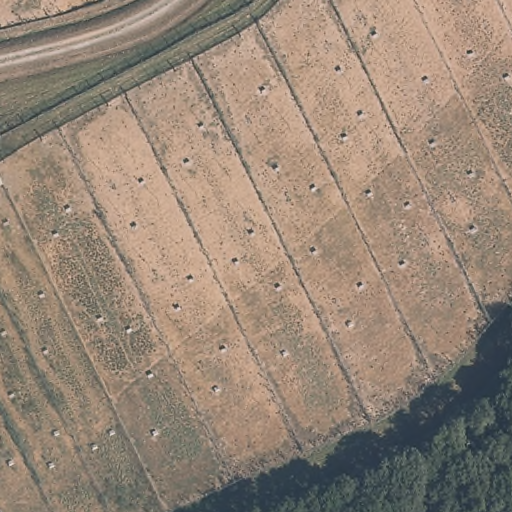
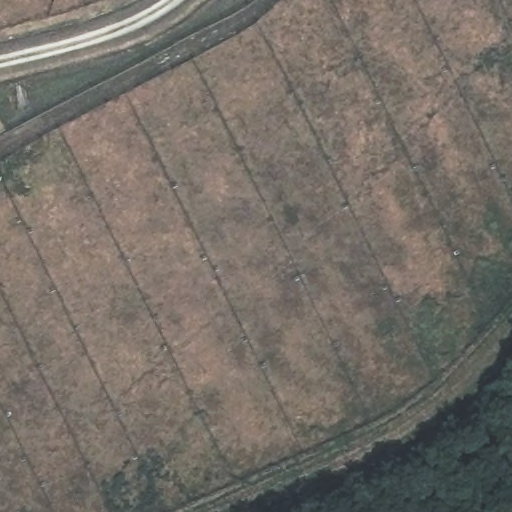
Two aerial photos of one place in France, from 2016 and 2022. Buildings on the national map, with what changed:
unchanged [(0,181),(0,173),(3,180),(0,181)]

